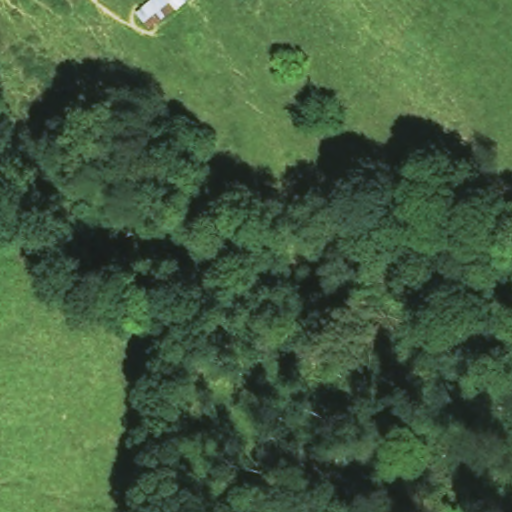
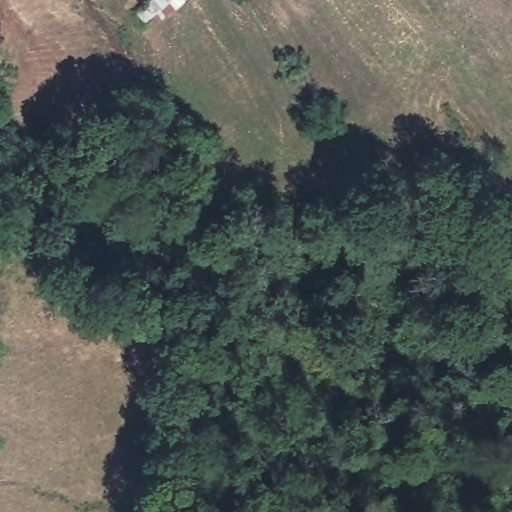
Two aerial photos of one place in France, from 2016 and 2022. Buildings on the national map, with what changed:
unchanged [(134,10),(144,0),(181,0),(148,26),(134,10)]

